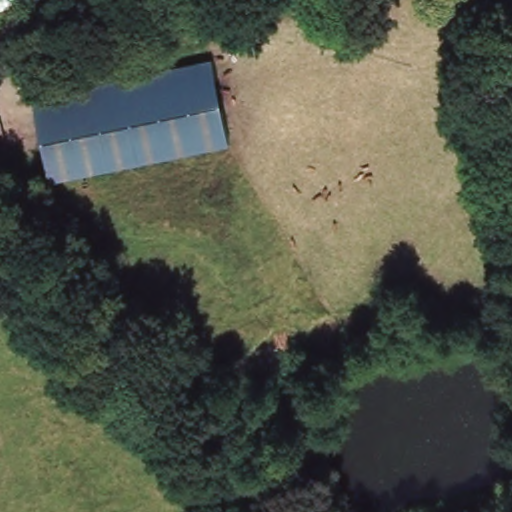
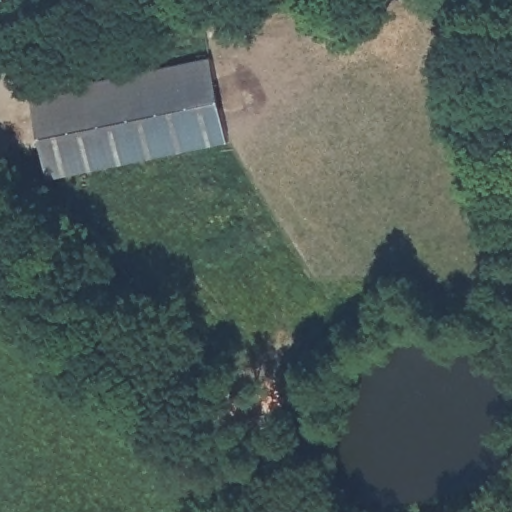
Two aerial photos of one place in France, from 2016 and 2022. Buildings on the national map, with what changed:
unchanged [(231,144),(49,179),(32,83),(94,69),(97,80),(211,57),(231,144)]

